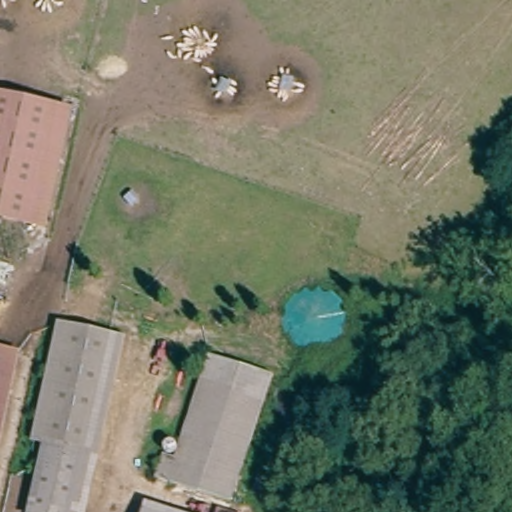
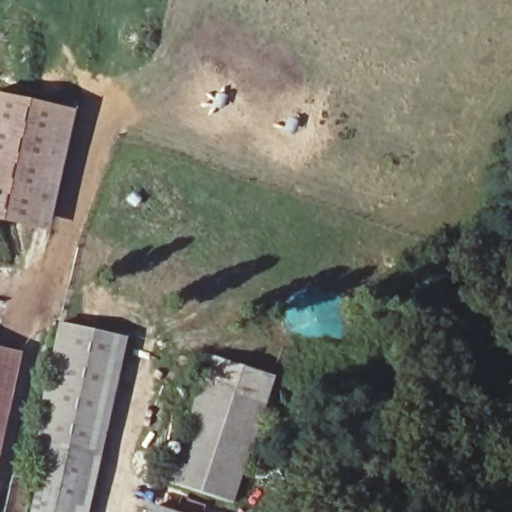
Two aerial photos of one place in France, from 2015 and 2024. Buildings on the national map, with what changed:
unchanged [(34,233),(9,226),(0,224),(0,100),(10,103),(64,116),(34,233)]
unchanged [(55,449),(35,444),(51,378),(62,327),(126,343),(99,460),(55,449)]
unchanged [(225,504),(149,476),(159,448),(177,455),(215,354),(273,376),(225,504)]
unchanged [(15,363),(0,439),(0,359),(15,363)]
unchanged [(41,512),(55,449),(99,460),(86,512),(41,512)]
unchanged [(143,512),(146,501),(175,512),(143,512)]

